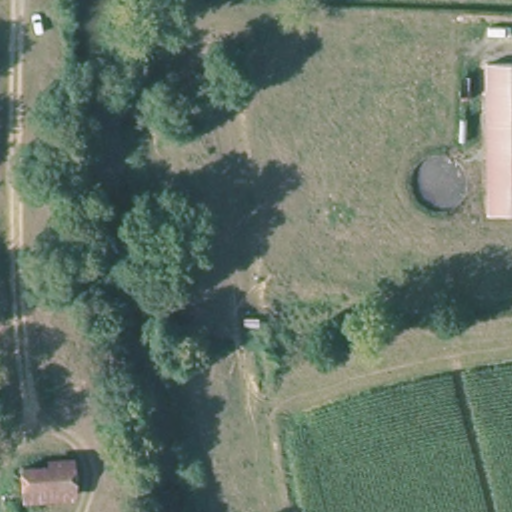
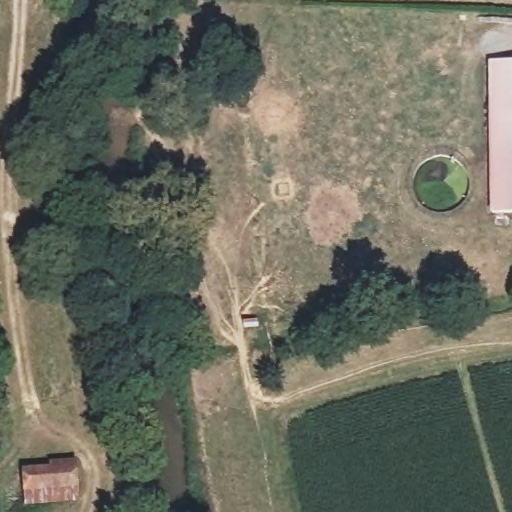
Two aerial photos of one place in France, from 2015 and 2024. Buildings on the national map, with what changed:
unchanged [(493,211),(488,62),(512,61),(512,211),(493,211)]
unchanged [(70,463),(72,487),(23,489),(22,465),(70,463)]

